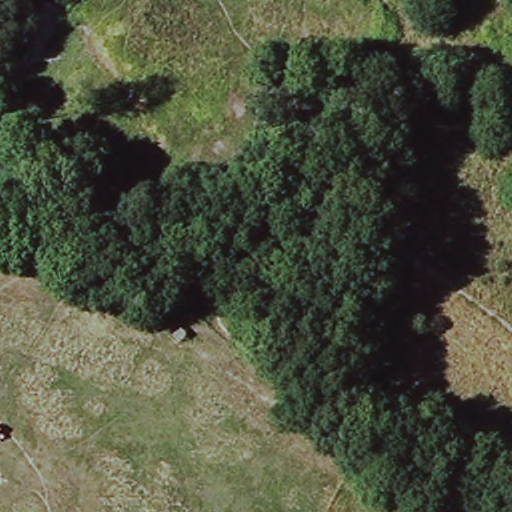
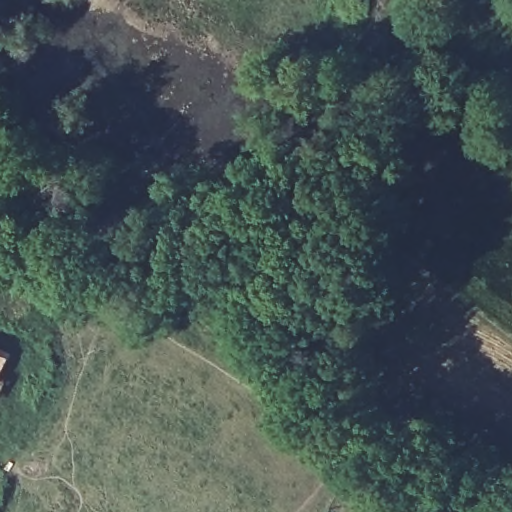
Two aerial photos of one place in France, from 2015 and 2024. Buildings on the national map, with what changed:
new [(7,356),(0,372),(0,352),(7,356)]

